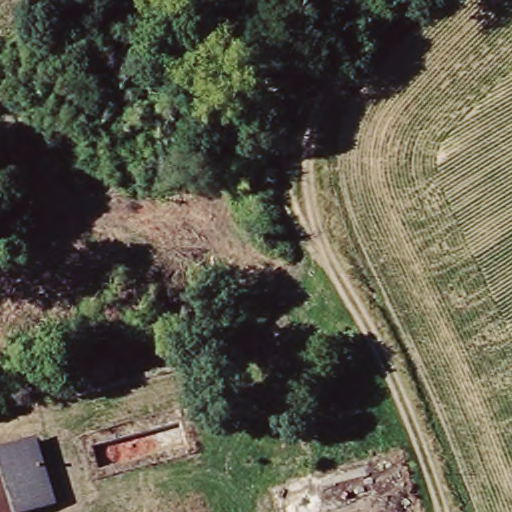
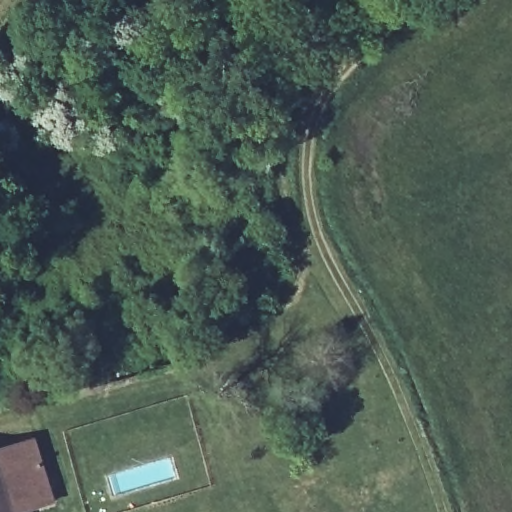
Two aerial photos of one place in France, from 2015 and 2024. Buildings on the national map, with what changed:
unchanged [(290,411),(310,405),(316,422),(355,412),(365,453),(304,469),(290,411)]
unchanged [(186,448),(87,479),(78,437),(179,409),(186,448)]
unchanged [(46,503),(18,512),(13,512),(0,472),(0,449),(29,441),(46,503)]
unchanged [(0,472),(13,512),(0,512),(0,472)]

